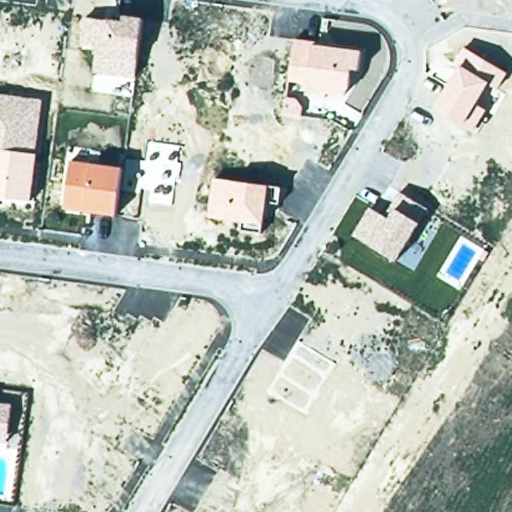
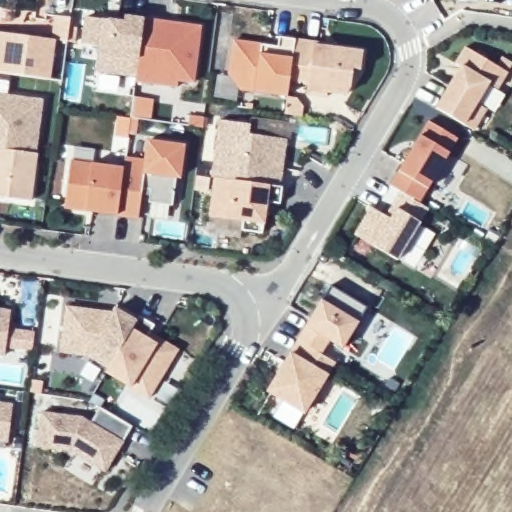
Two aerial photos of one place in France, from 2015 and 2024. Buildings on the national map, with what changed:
unchanged [(122,20),(123,15),(144,18),(136,77),(94,71),(96,47),(82,45),(85,16),(122,20)]
new [(192,84),(177,81),(177,89),(135,84),(136,77),(144,18),(200,25),(192,84)]
new [(0,73),(0,31),(67,40),(60,80),(0,73)]
new [(287,95),(253,90),(240,89),(227,75),(232,40),(278,46),(280,37),(295,39),(290,81),(287,95)]
unchanged [(316,41),(315,45),(362,50),(360,70),(352,69),(350,87),(345,95),(307,90),(307,84),(290,81),(295,39),(316,41)]
unchanged [(470,127),(430,105),(455,65),(449,61),(459,45),(503,72),(493,89),(482,84),(472,101),(482,108),(470,127)]
unchanged [(32,200),(0,196),(0,94),(43,99),(32,200)]
new [(215,177),(221,120),(248,123),(247,134),(287,139),(282,186),(215,177)]
new [(447,152),(426,187),(417,201),(402,192),(388,183),(396,170),(417,135),(427,120),(457,138),(447,152)]
new [(179,179),(176,178),(172,206),(140,201),(138,218),(118,215),(123,168),(125,155),(143,157),(146,139),(185,144),(179,179)]
unchanged [(92,164),(123,168),(118,215),(85,211),(64,208),(72,160),(92,164)]
unchanged [(282,186),(280,203),(267,201),(262,233),(242,230),(243,221),(208,216),(215,177),(282,186)]
unchanged [(399,258),(353,234),(370,206),(387,216),(402,192),(428,208),(399,258)]
new [(356,321),(341,349),(327,341),(320,353),(295,339),(303,326),(320,300),(330,284),(365,306),(356,321)]
new [(63,305),(110,311),(113,305),(137,320),(132,328),(105,367),(87,356),(57,352),(63,305)]
new [(8,327),(33,332),(30,351),(5,347),(5,356),(0,356),(0,307),(11,309),(8,327)]
new [(132,328),(148,338),(151,332),(178,348),(147,398),(129,387),(102,372),(105,367),(132,328)]
new [(327,373),(303,414),(265,389),(287,351),(295,339),(320,353),(334,362),(327,373)]
unchanged [(7,442),(0,442),(0,403),(13,405),(7,442)]
new [(105,473),(68,451),(35,446),(40,410),(80,415),(90,420),(97,406),(130,425),(105,473)]

